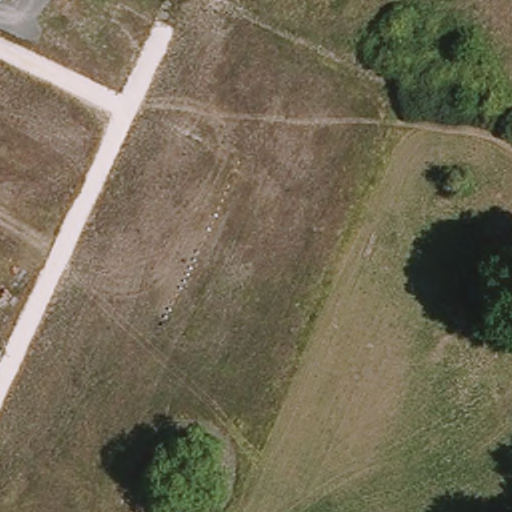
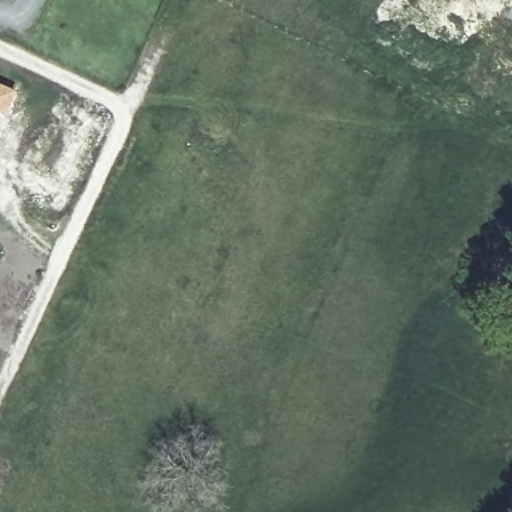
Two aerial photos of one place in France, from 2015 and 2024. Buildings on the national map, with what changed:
new [(13,94),(0,123),(0,88),(13,94)]

